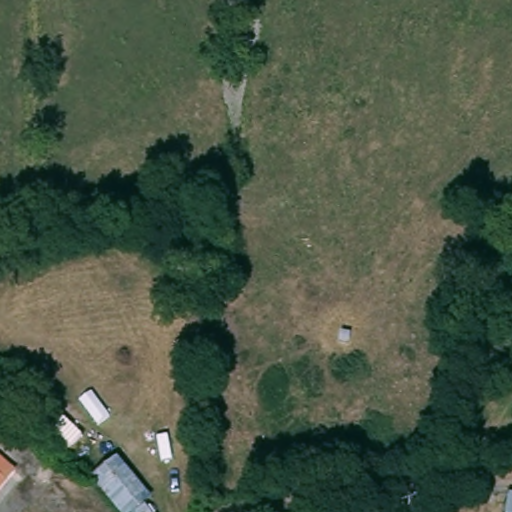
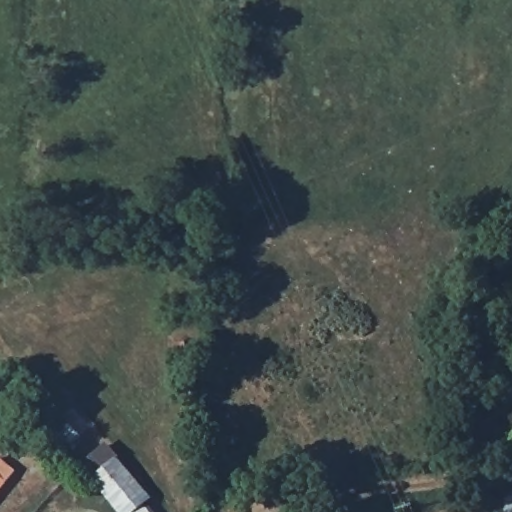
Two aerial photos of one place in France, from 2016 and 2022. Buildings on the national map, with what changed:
unchanged [(125,472),(153,512),(118,512),(101,489),(125,472)]
unchanged [(5,482),(0,488),(0,477),(5,482)]
unchanged [(512,512),(507,512),(510,491),(512,492),(512,512)]

